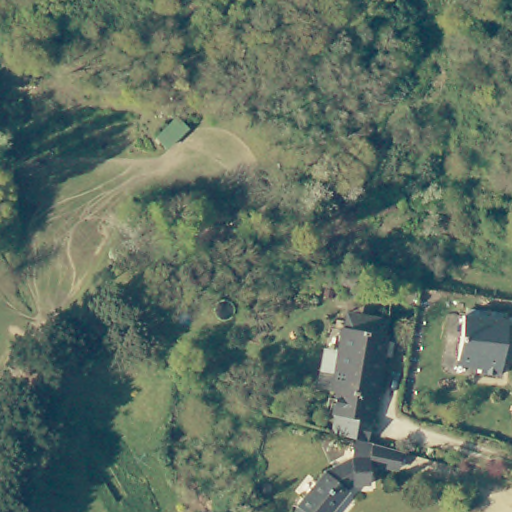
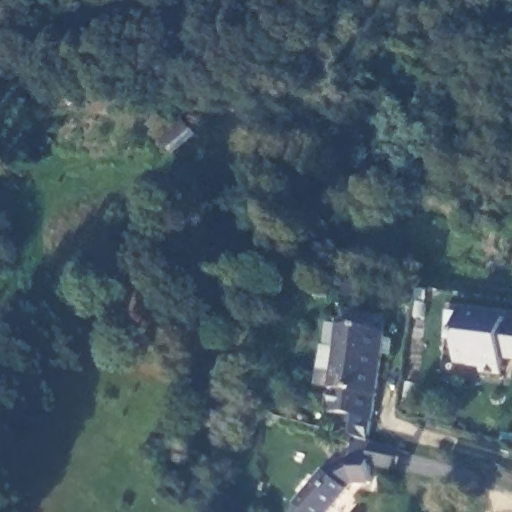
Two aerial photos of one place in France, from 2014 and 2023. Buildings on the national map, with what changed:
unchanged [(318,386),(320,367),(337,368),(341,327),(343,309),(388,315),(387,332),(371,442),(344,435),(333,432),(336,389),(318,386)]
unchanged [(510,326),(512,326),(512,362),(503,361),(501,376),(481,373),(483,360),(458,356),(465,312),(510,318),(510,326)]
unchanged [(406,458),(404,474),(378,469),(374,488),(355,486),(320,512),(288,512),(291,498),(325,469),(351,471),(354,445),(381,452),(406,458)]

